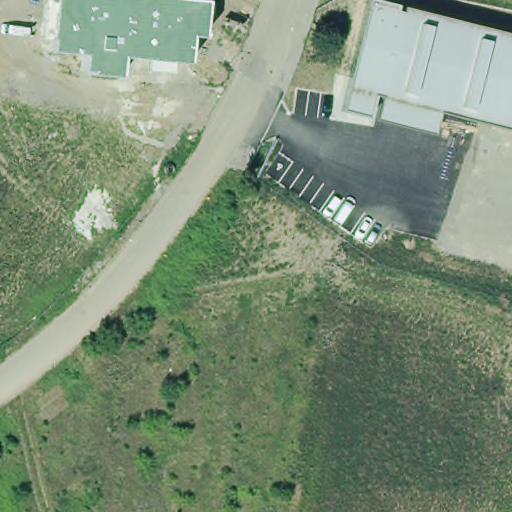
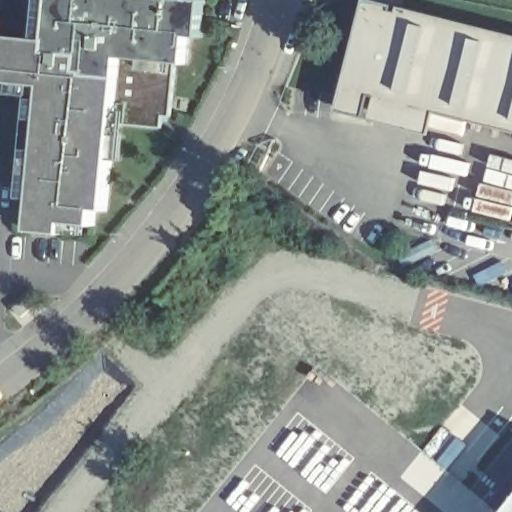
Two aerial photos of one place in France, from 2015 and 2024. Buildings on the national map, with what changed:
unchanged [(199,0),(198,0),(205,1),(201,37),(188,35),(187,64),(168,62),(168,70),(168,71),(144,70),(145,59),(119,56),(118,76),(80,72),(82,55),(48,51),(50,39),(38,38),(43,0),(199,0)]
unchanged [(371,1),(512,35),(512,129),(438,110),(432,133),(375,119),(380,96),(372,94),(366,116),(341,109),(371,1)]
new [(0,21),(1,21),(0,34),(0,21)]
new [(94,226),(65,224),(63,235),(29,232),(43,87),(0,83),(0,34),(38,38),(50,39),(48,51),(82,55),(80,72),(118,76),(114,124),(107,211),(96,210),(94,226)]
new [(163,117),(162,129),(114,124),(118,76),(119,56),(145,59),(144,70),(168,71),(168,70),(168,62),(177,63),(171,117),(163,117)]
new [(28,296),(35,305),(20,316),(14,307),(28,296)]
new [(512,494),(512,512),(498,512),(512,494)]

